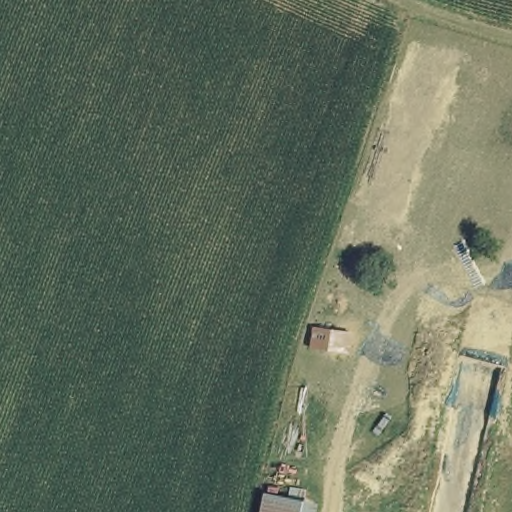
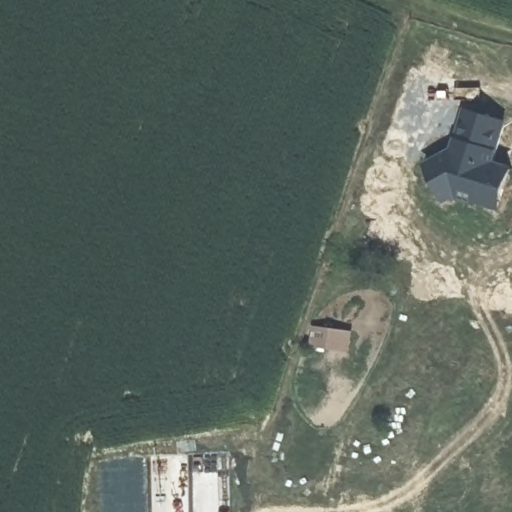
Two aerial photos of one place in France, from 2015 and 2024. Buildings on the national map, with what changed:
new [(455,138),(453,138),(464,105),(508,120),(500,146),(501,146),(497,160),(512,165),(512,177),(502,213),(460,200),(445,203),(424,161),(452,148),(455,138)]
new [(355,329),(351,354),(309,347),(314,323),(355,329)]
demolished [(256,512),(261,488),(320,502),(318,512),(256,512)]

